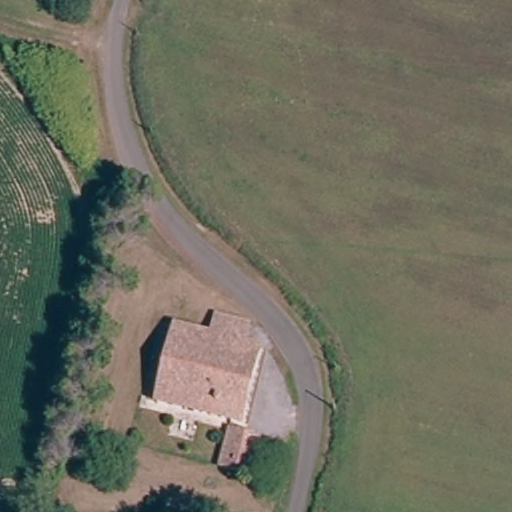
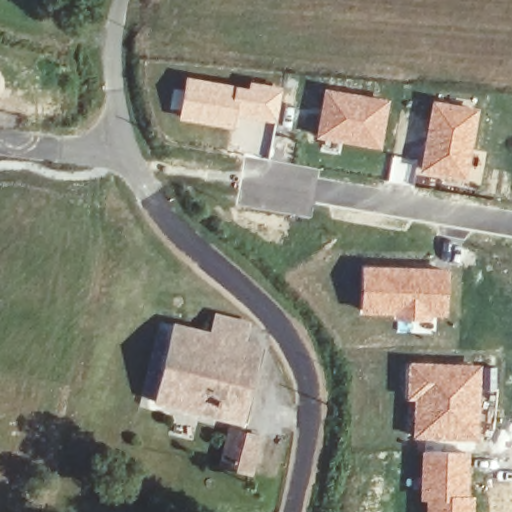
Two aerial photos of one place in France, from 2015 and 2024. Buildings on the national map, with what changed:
new [(185,75),(247,87),(249,80),(282,87),(275,123),(236,116),(234,129),(178,119),(185,75)]
new [(324,87),(390,98),(380,150),(315,137),(324,87)]
new [(432,99),(479,107),(470,180),(419,172),(432,99)]
new [(244,155),(321,169),(312,219),(236,205),(244,155)]
new [(393,156),(413,161),(409,186),(387,181),(393,156)]
new [(362,265),(449,268),(445,317),(434,317),(434,322),(359,313),(362,265)]
unchanged [(238,348),(253,351),(237,427),(232,427),(153,410),(161,373),(174,312),(193,315),(190,324),(240,335),(238,348)]
new [(407,361),(481,363),(482,442),(411,437),(413,401),(404,400),(407,361)]
unchanged [(253,447),(244,485),(221,479),(228,441),(253,447)]
new [(421,450),(473,452),(472,496),(476,496),(475,512),(424,512),(424,501),(419,501),(421,450)]

